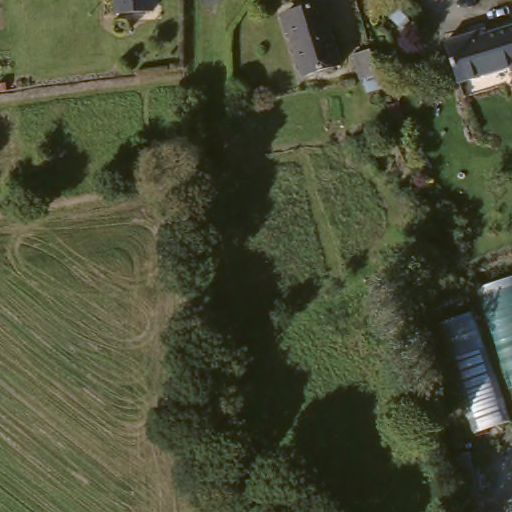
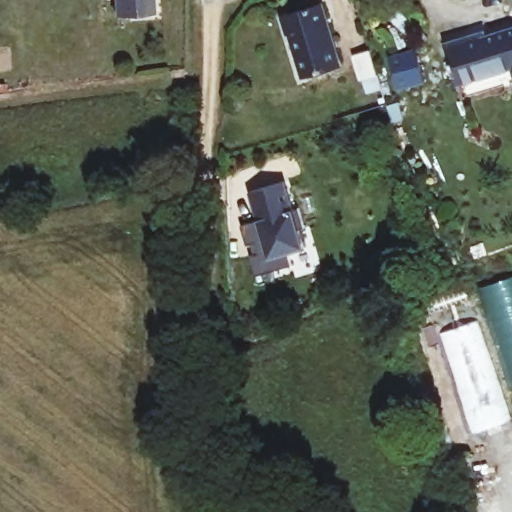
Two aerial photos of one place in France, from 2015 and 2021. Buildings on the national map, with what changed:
unchanged [(121,16),(120,0),(157,0),(159,14),(121,16)]
unchanged [(329,4),(346,61),(310,72),(293,15),(329,4)]
unchanged [(454,86),(444,41),(512,24),(512,71),(454,86)]
unchanged [(385,72),(369,77),(368,74),(359,50),(378,44),(385,72)]
new [(294,212),(300,210),(306,228),(298,231),(302,247),(289,252),(292,264),(257,276),(252,259),(264,255),(259,242),(248,245),(242,225),(260,220),(253,193),(284,184),(294,212)]
unchanged [(506,391),(512,411),(512,422),(477,433),(443,322),(484,310),(477,288),(512,276),(512,390),(506,391)]

